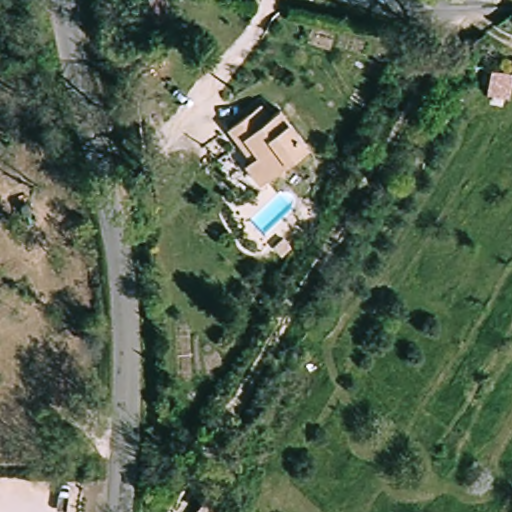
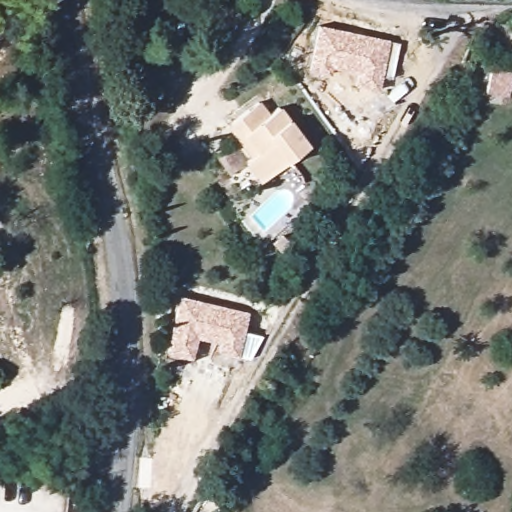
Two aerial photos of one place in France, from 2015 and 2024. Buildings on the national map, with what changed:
new [(391,40),(378,90),(354,86),(357,72),(332,67),(330,75),(308,70),(318,24),(391,40)]
unchanged [(224,127),(257,105),(265,117),(278,109),(306,148),(256,184),(243,166),(249,161),(233,140),(224,127)]
new [(245,332),(262,336),(250,358),(240,356),(240,358),(218,352),(220,344),(198,339),(192,360),(165,352),(182,296),(250,312),(245,332)]

